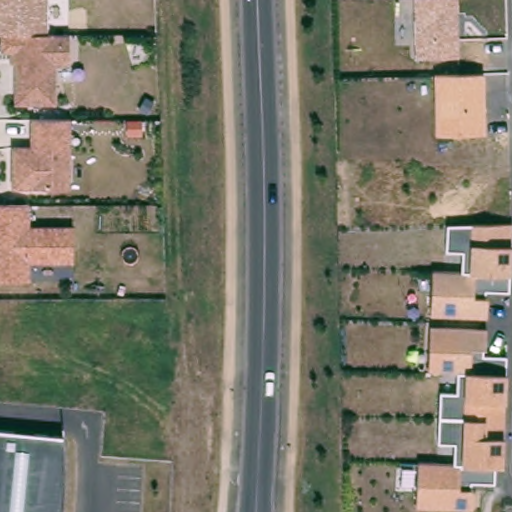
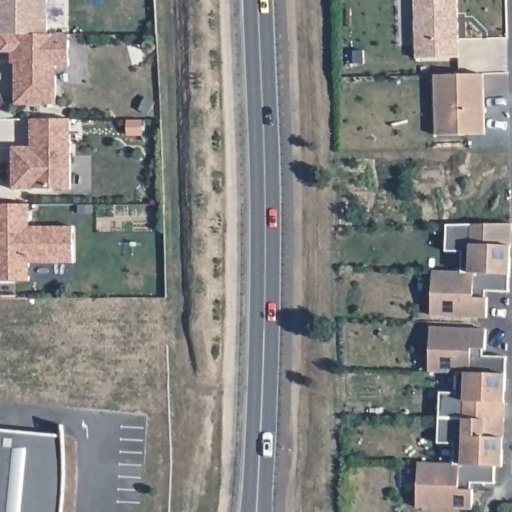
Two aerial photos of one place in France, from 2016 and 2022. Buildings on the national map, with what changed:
unchanged [(46,34),(26,34),(4,34),(0,34),(0,0),(46,0),(46,33),(46,34)]
unchanged [(419,55),(416,0),(461,0),(462,58),(419,55)]
unchanged [(46,34),(72,34),(72,65),(59,64),(61,101),(16,100),(15,52),(4,51),(4,34),(46,34)]
unchanged [(436,75),(485,74),(485,134),(436,135),(436,75)]
unchanged [(72,116),(74,190),(14,189),(15,145),(35,145),(35,115),(72,116)]
unchanged [(28,225),(72,225),(72,248),(72,261),(28,261),(28,280),(0,280),(0,203),(28,203),(28,225)]
unchanged [(462,270),(462,250),(446,249),(447,221),(512,224),(509,290),(487,290),(486,317),(431,315),(433,270),(462,270)]
unchanged [(496,481),(472,481),(472,510),(417,507),(419,462),(453,462),(453,443),(438,442),(441,391),(457,391),(458,369),(428,368),(431,325),(487,328),(486,355),(507,355),(503,465),(496,464),(496,481)]
unchanged [(69,470),(67,500),(65,512),(0,512),(0,426),(67,432),(69,470)]

